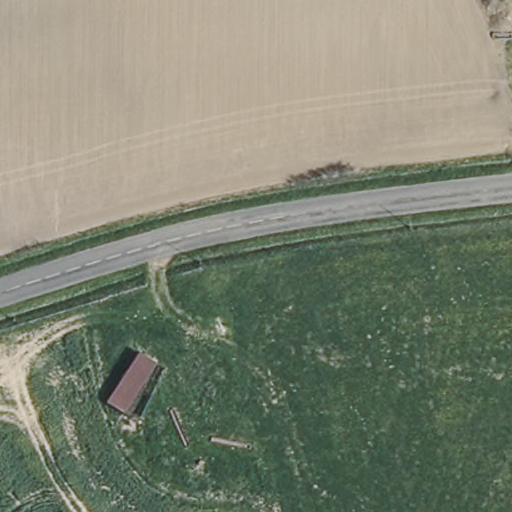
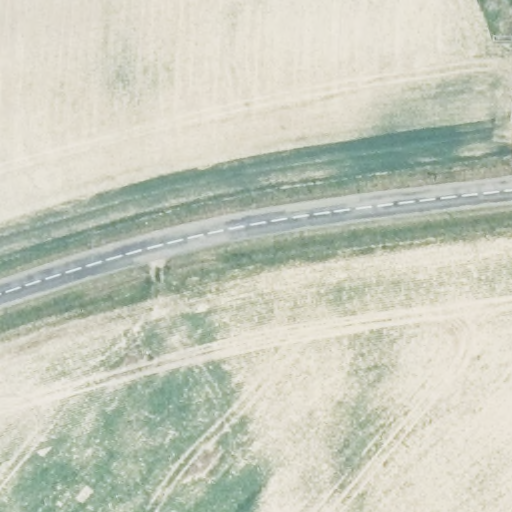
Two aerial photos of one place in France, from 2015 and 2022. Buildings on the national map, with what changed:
demolished [(136,354),(152,364),(120,414),(103,404),(136,354)]

